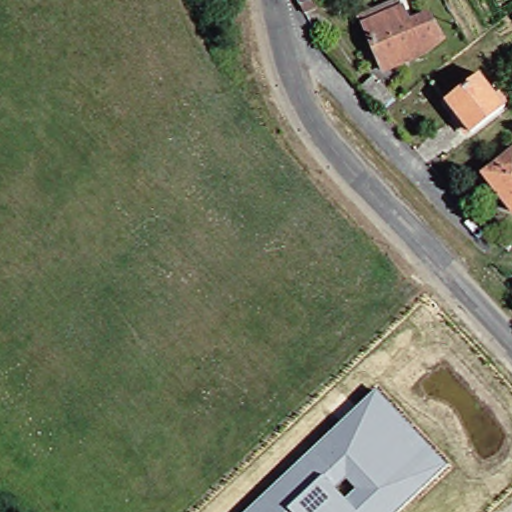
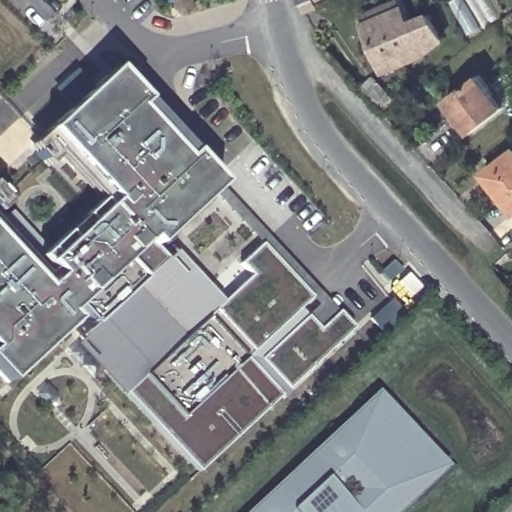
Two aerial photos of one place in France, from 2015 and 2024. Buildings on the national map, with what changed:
unchanged [(405,1),(408,9),(411,8),(417,22),(435,14),(452,36),(431,53),(432,55),(393,71),(372,24),(374,22),(371,16),(405,1)]
new [(153,246),(166,260),(175,252),(216,297),(201,312),(141,247),(148,241),(160,230),(153,224),(192,188),(94,84),(111,69),(141,101),(133,107),(180,160),(188,152),(218,187),(153,246)]
unchanged [(383,75),(402,97),(391,106),(373,84),(383,75)]
unchanged [(476,137),(451,107),(484,80),(510,112),(476,137)]
new [(116,397),(125,388),(76,335),(88,323),(71,306),(59,317),(65,323),(0,385),(0,229),(1,229),(36,267),(101,207),(37,137),(94,84),(192,188),(153,224),(160,230),(141,247),(201,312),(240,276),(232,268),(251,251),(297,300),(240,353),(227,340),(221,345),(272,401),(191,476),(116,397)]
unchanged [(512,155),(512,204),(489,173),(512,155)]
new [(221,345),(227,340),(240,353),(292,305),(316,331),(336,313),(352,329),(272,401),(221,345)]
unchanged [(448,465),(398,512),(247,512),(377,390),(448,465)]

